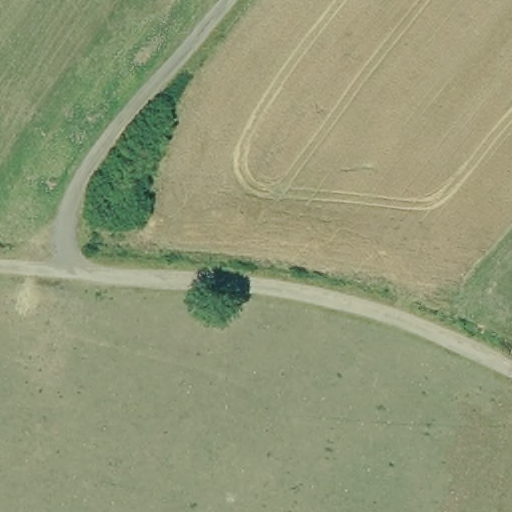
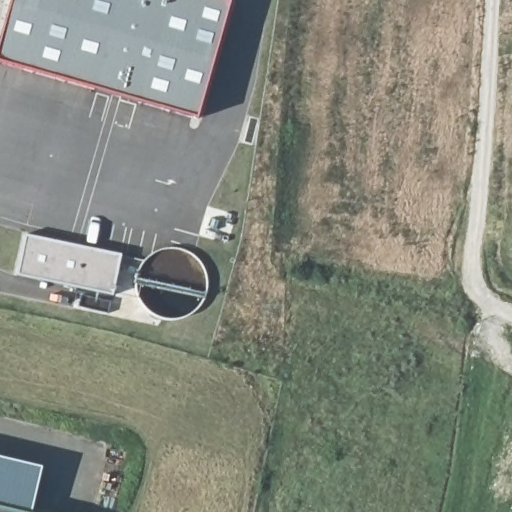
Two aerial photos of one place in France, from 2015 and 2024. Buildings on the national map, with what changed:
new [(197,117),(0,64),(0,40),(11,0),(231,0),(197,117)]
new [(120,257),(112,297),(16,276),(25,236),(120,257)]
new [(30,512),(19,512),(0,508),(0,458),(40,467),(30,512)]
unchanged [(0,512),(0,508),(19,512),(0,512)]

